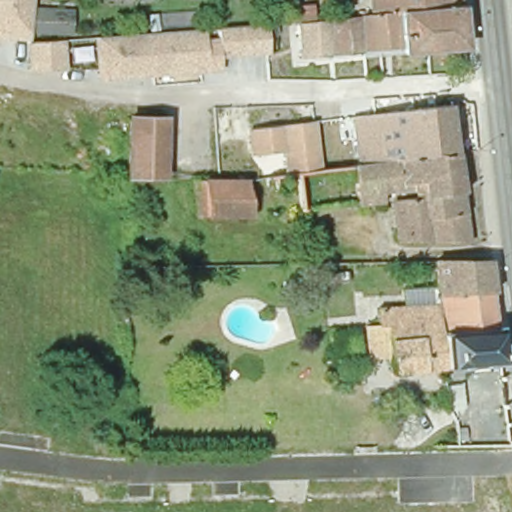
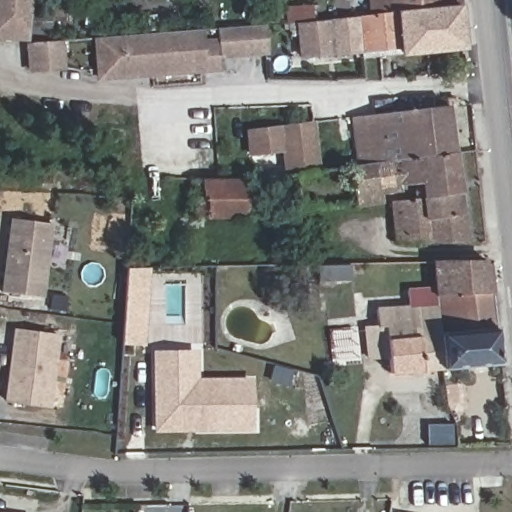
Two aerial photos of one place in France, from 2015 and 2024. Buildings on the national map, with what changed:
unchanged [(33,32),(33,40),(0,39),(0,0),(35,0),(34,8),(73,9),(73,34),(33,32)]
unchanged [(461,11),(374,17),(373,0),(460,0),(461,11)]
unchanged [(303,59),(300,23),(287,25),(286,8),(312,6),(313,22),(315,22),(316,22),(317,22),(332,21),(335,57),(303,59)]
unchanged [(403,55),(402,52),(335,57),(332,21),(374,17),(461,11),(465,50),(452,51),(416,54),(403,55)]
unchanged [(267,54),(220,58),(221,71),(100,81),(98,49),(97,41),(100,40),(152,36),(265,26),(267,54)]
unchanged [(66,47),(68,71),(36,73),(33,46),(65,43),(66,47)]
unchanged [(358,207),(352,166),(363,164),(353,117),(453,106),(469,241),(440,242),(440,252),(395,252),(387,203),(358,207)]
demolished [(127,148),(127,117),(165,118),(165,149),(127,148)]
unchanged [(324,169),(320,169),(300,172),(293,173),(290,148),(257,153),(254,129),(317,121),(324,169)]
unchanged [(256,219),(214,219),(196,219),(196,183),(270,185),(273,210),(260,210),(256,209),(256,219)]
new [(2,292),(12,217),(54,223),(44,297),(2,292)]
unchanged [(489,265),(492,295),(435,300),(435,266),(489,265)]
new [(129,266),(149,268),(145,346),(124,345),(129,266)]
unchanged [(440,372),(436,333),(435,310),(435,300),(492,295),(501,366),(440,372)]
unchanged [(391,378),(389,362),(368,364),(365,334),(376,332),(375,316),(435,310),(436,333),(440,372),(391,378)]
new [(52,408),(5,402),(15,328),(62,333),(52,408)]
unchanged [(355,333),(358,357),(339,359),(335,337),(355,333)]
new [(254,377),(254,431),(154,432),(153,350),(199,349),(199,378),(254,377)]
demolished [(508,419),(511,443),(456,444),(456,423),(455,422),(508,419)]

